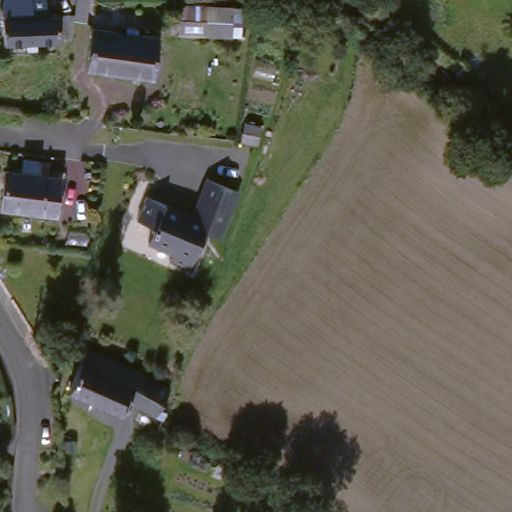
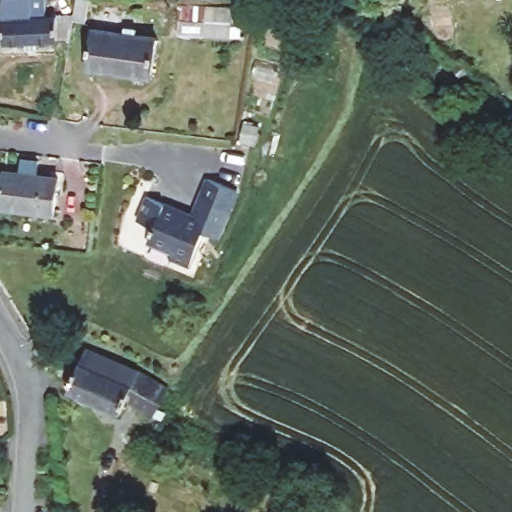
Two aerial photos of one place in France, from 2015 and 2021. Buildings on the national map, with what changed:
unchanged [(61,19),(61,41),(51,42),(51,45),(0,46),(0,1),(0,0),(39,0),(39,19),(61,19)]
unchanged [(179,36),(182,7),(233,10),(231,40),(179,36)]
unchanged [(88,68),(94,29),(158,39),(153,77),(88,68)]
unchanged [(241,145),(243,130),(263,132),(260,148),(241,145)]
unchanged [(10,209),(13,175),(28,175),(28,161),(43,162),(43,176),(63,177),(61,212),(10,209)]
unchanged [(210,227),(194,262),(175,255),(178,248),(153,237),(159,222),(143,215),(153,192),(198,212),(214,176),(244,190),(224,234),(210,227)]
unchanged [(131,402),(121,413),(68,382),(92,345),(173,392),(165,404),(169,409),(163,421),(131,402)]
unchanged [(36,355),(34,351),(48,349),(52,374),(41,377),(36,355)]

